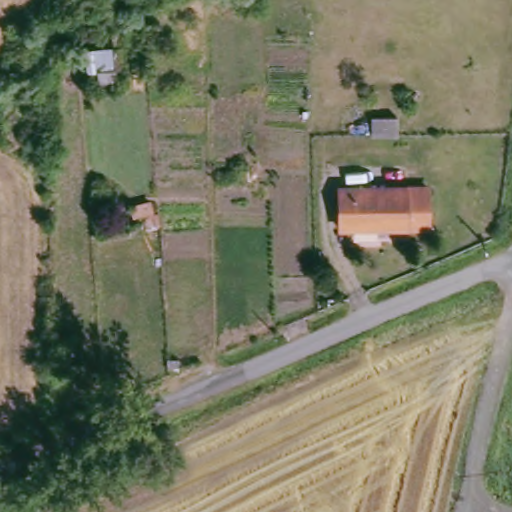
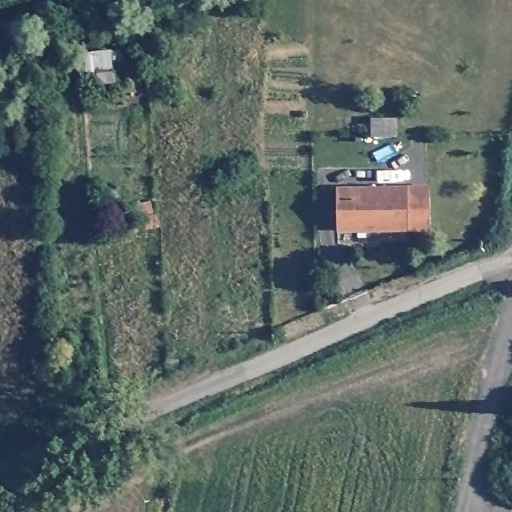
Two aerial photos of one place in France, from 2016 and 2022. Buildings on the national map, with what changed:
unchanged [(401,114),(402,130),(377,130),(376,113),(401,114)]
unchanged [(427,224),(346,224),(347,185),(428,185),(427,224)]

